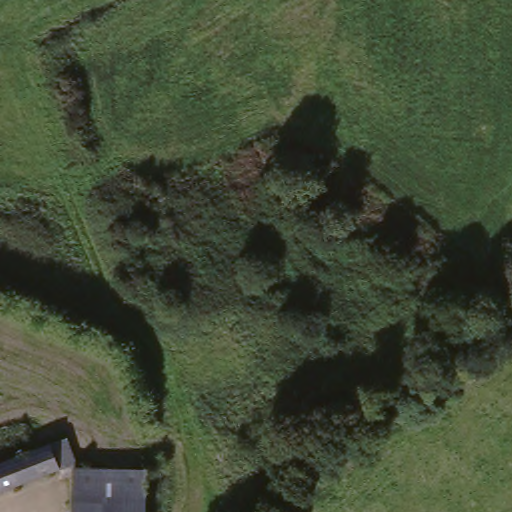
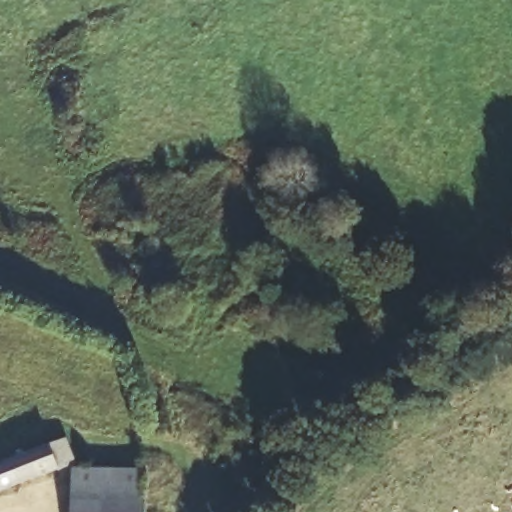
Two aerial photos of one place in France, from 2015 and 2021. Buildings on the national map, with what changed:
unchanged [(63,445),(71,467),(0,497),(0,470),(63,445)]
unchanged [(142,512),(71,512),(71,477),(143,479),(142,512)]

